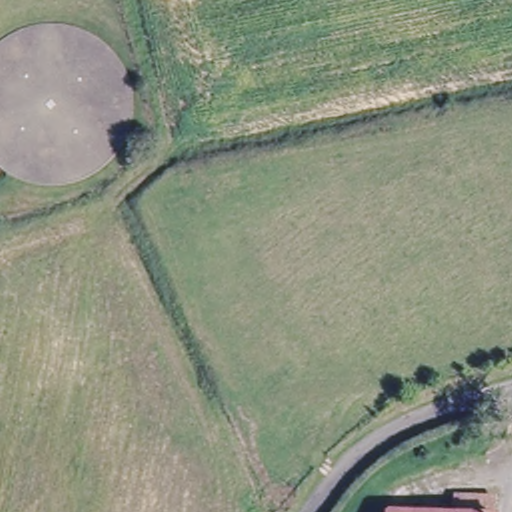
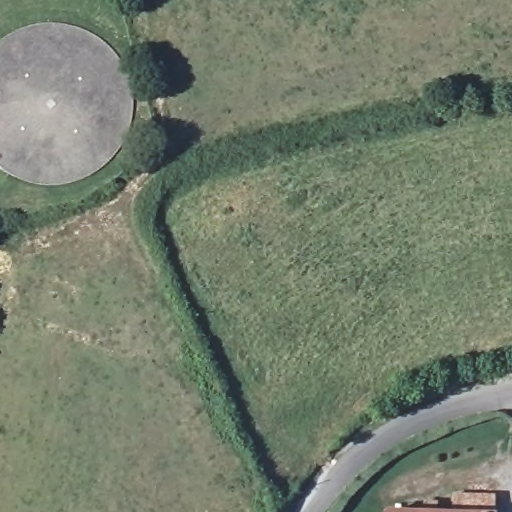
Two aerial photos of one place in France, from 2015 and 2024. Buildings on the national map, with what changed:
unchanged [(450,499),(495,499),(495,512),(450,512),(450,499)]

